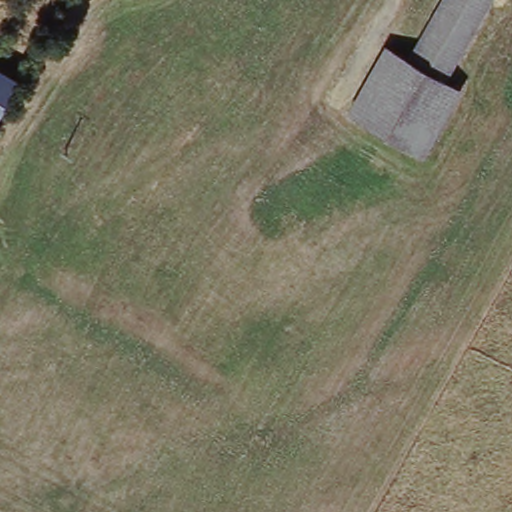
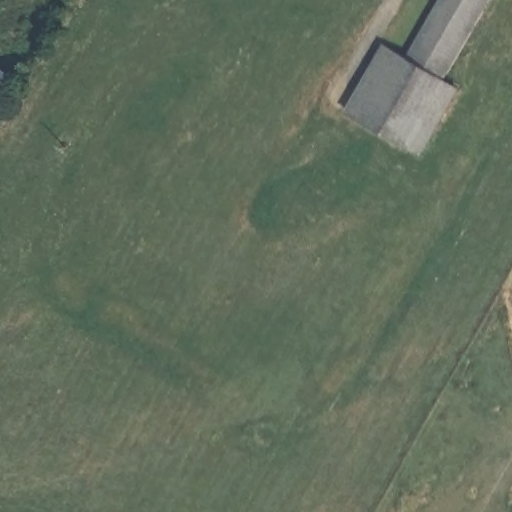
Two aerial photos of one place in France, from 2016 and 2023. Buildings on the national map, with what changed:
unchanged [(445,0),(495,0),(446,87),(408,65),(445,0)]
unchanged [(347,117),(385,52),(401,61),(363,127),(347,117)]
unchanged [(363,127),(401,61),(408,65),(446,87),(409,154),(363,127)]
unchanged [(26,81),(0,124),(0,67),(26,81)]
unchanged [(462,97),(424,163),(409,154),(446,87),(462,97)]

